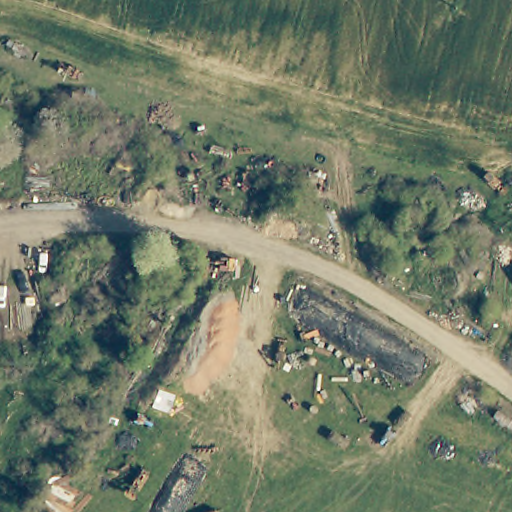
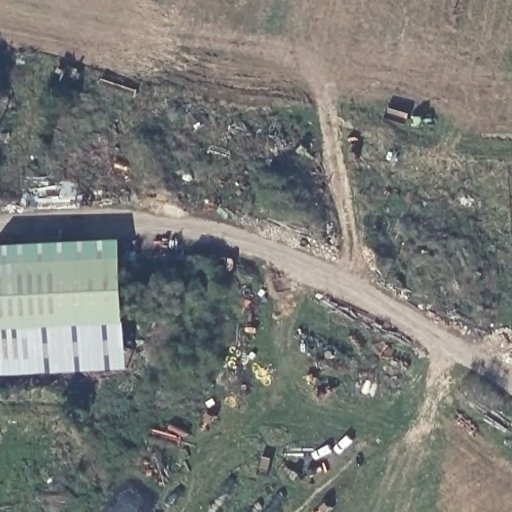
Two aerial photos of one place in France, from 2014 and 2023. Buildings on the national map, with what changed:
new [(129,370),(0,376),(0,266),(124,258),(129,370)]

